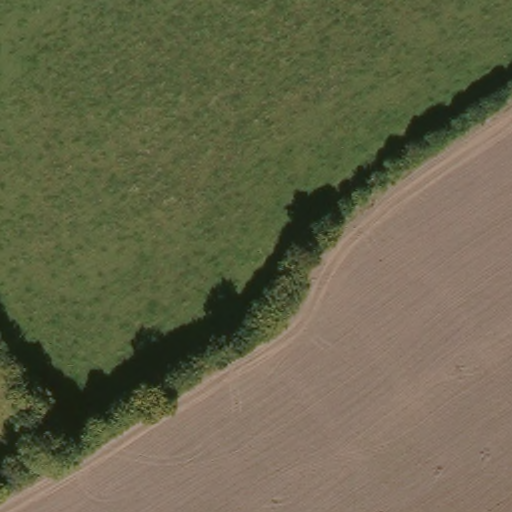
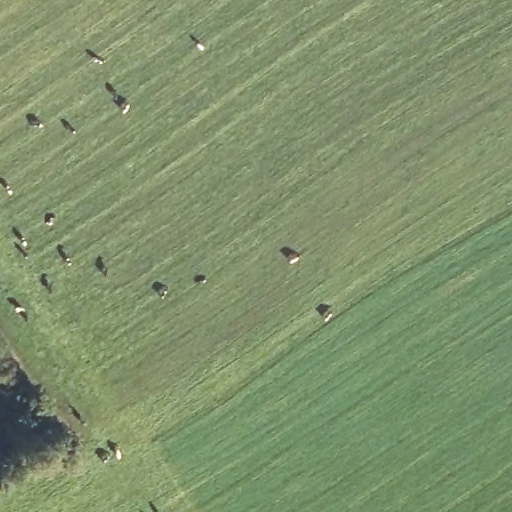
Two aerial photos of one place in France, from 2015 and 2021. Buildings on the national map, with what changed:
[]

